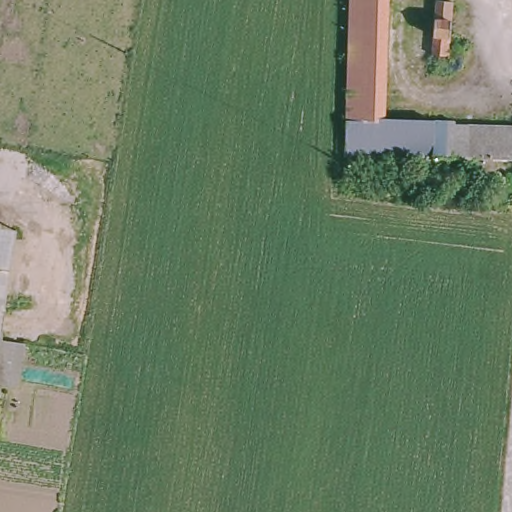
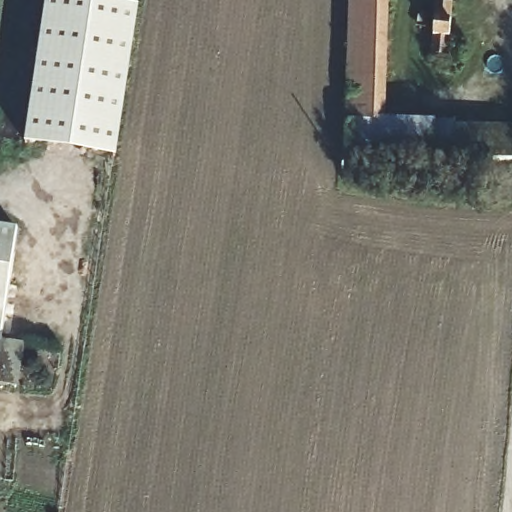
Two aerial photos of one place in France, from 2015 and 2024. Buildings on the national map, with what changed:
new [(111,161),(17,151),(42,0),(65,0),(135,9),(111,161)]
unchanged [(346,80),(349,0),(386,0),(384,81),(346,80)]
unchanged [(434,1),(450,2),(446,73),(429,72),(434,1)]
unchanged [(383,120),(346,119),(346,100),(346,80),(384,81),(383,120)]
unchanged [(486,174),(479,174),(478,178),(469,178),(470,160),(344,156),(346,119),(383,120),(454,121),(454,125),(512,126),(512,160),(493,160),(493,174),(486,174)]
unchanged [(4,311),(0,310),(0,229),(16,232),(4,311)]
unchanged [(0,336),(0,310),(4,311),(0,336)]
demolished [(21,356),(0,353),(0,349),(1,340),(23,344),(21,356)]
unchanged [(0,385),(0,353),(21,356),(16,387),(0,385)]

